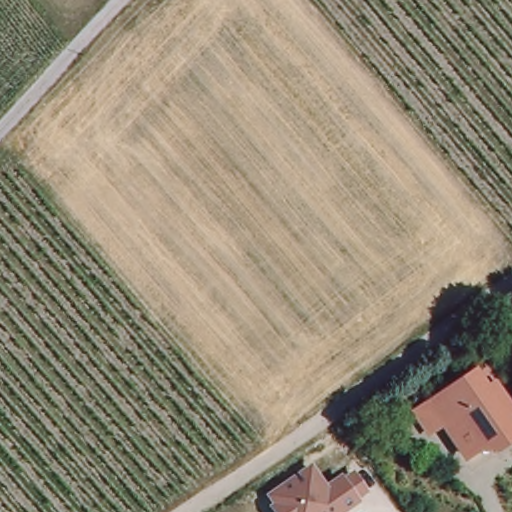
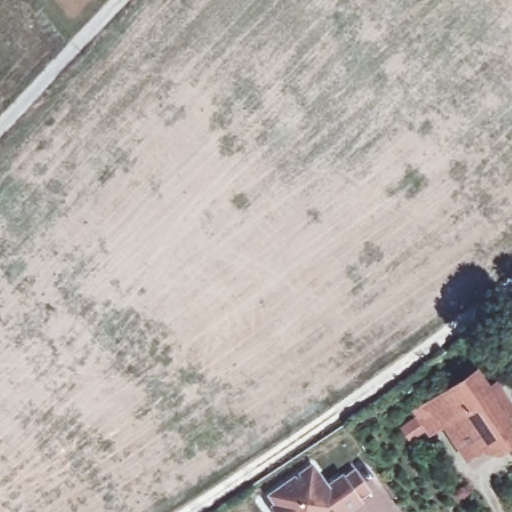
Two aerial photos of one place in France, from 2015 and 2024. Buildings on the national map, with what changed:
unchanged [(440,423),(428,405),(468,378),(480,395),(488,390),(505,415),(497,420),(508,438),(500,446),(485,443),(461,460),(437,425),(440,423)]
unchanged [(398,407),(390,399),(401,391),(407,400),(398,407)]
unchanged [(327,485),(343,472),(345,477),(355,470),(372,493),(361,501),(363,504),(352,512),(271,512),(267,506),(272,505),(266,493),(311,463),(327,485)]

